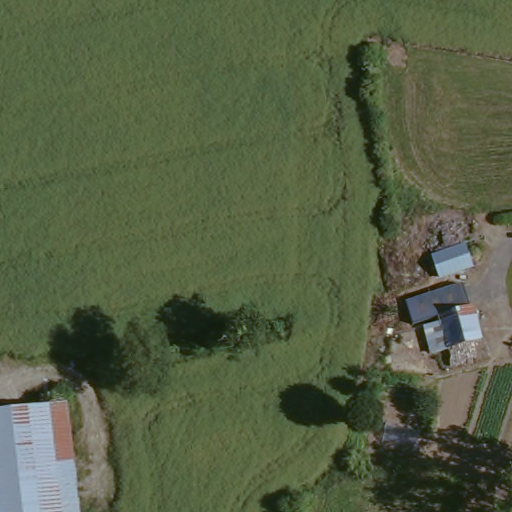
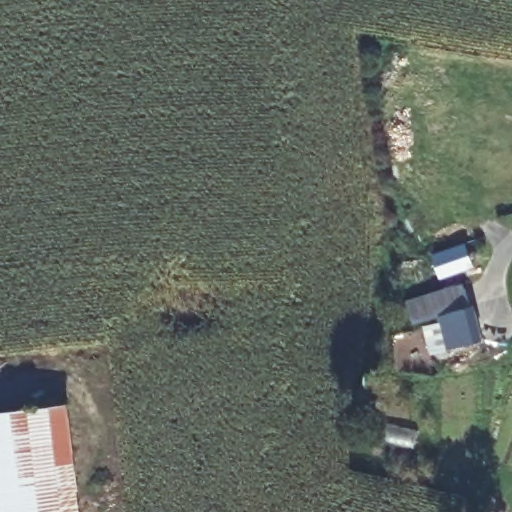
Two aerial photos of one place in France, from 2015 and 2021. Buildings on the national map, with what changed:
unchanged [(460,249),(461,249),(462,251),(469,269),(439,280),(432,258),(460,249)]
unchanged [(409,330),(402,307),(459,289),(466,311),(469,310),(480,343),(448,353),(438,320),(409,330)]
unchanged [(56,512),(11,512),(0,411),(44,405),(56,512)]
unchanged [(0,512),(0,411),(11,512),(0,512)]

